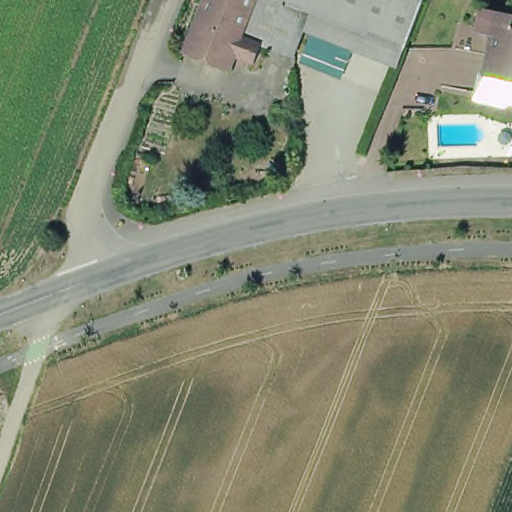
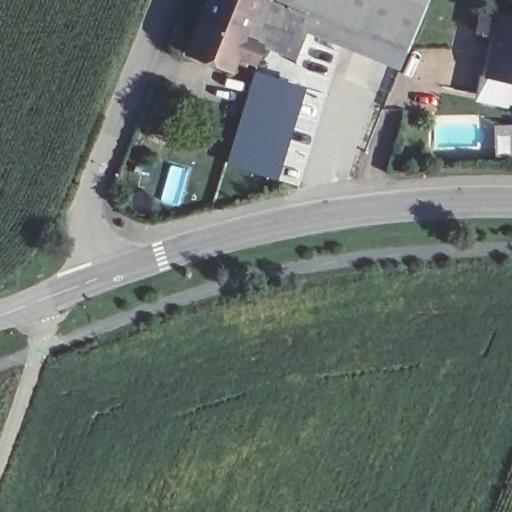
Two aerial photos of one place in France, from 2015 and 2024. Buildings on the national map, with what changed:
unchanged [(188,33),(201,0),(251,0),(238,32),(257,40),(250,58),(188,33)]
unchanged [(238,32),(251,0),(419,0),(401,45),(307,7),(289,53),(257,40),(238,32)]
unchanged [(487,77),(482,76),(488,34),(484,33),(485,31),(476,30),(479,11),(497,14),(512,16),(512,81),(487,77)]
new [(304,88),(278,181),(228,165),(254,73),(304,88)]

